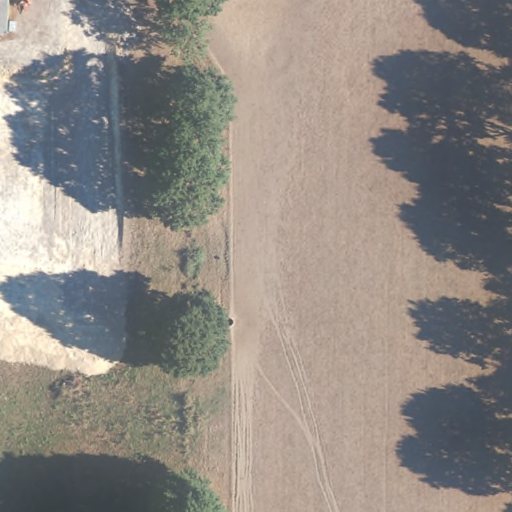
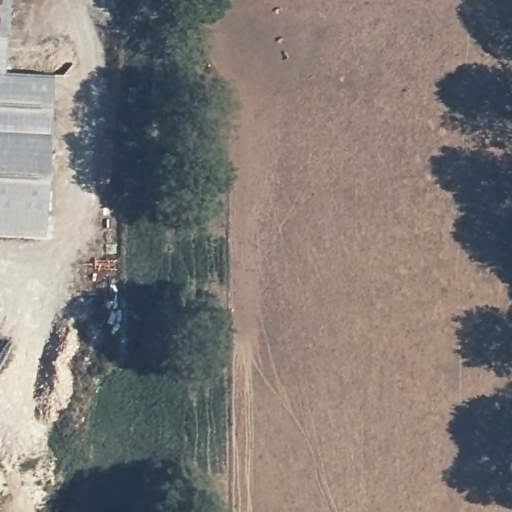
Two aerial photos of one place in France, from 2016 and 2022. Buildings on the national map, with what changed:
unchanged [(0,33),(0,0),(7,0),(5,33),(0,33)]
new [(0,234),(0,33),(5,33),(0,73),(53,76),(43,236),(0,234)]

